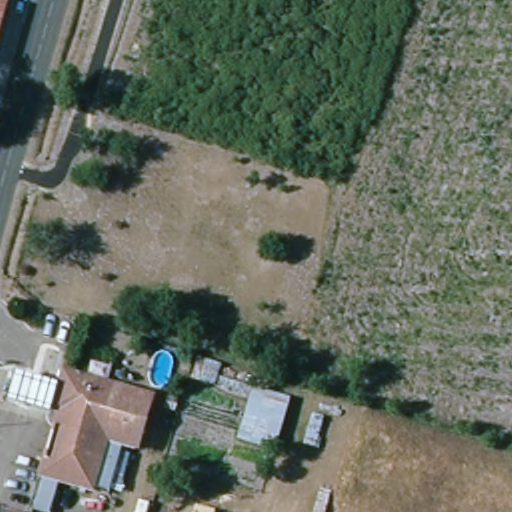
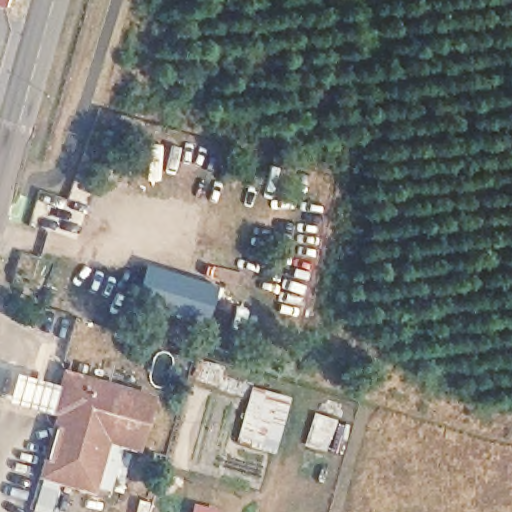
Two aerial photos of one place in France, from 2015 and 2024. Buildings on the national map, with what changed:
unchanged [(0,54),(0,0),(15,0),(0,54)]
new [(151,308),(153,298),(137,293),(146,265),(217,287),(206,325),(151,308)]
unchanged [(94,490),(43,476),(61,413),(55,412),(66,373),(89,380),(78,417),(112,427),(108,440),(94,490)]
unchanged [(40,415),(11,407),(19,377),(47,385),(40,415)]
unchanged [(138,449),(108,440),(112,427),(78,417),(89,380),(154,398),(138,449)]
unchanged [(236,437),(240,420),(246,388),(290,402),(283,431),(278,450),(236,437)]

